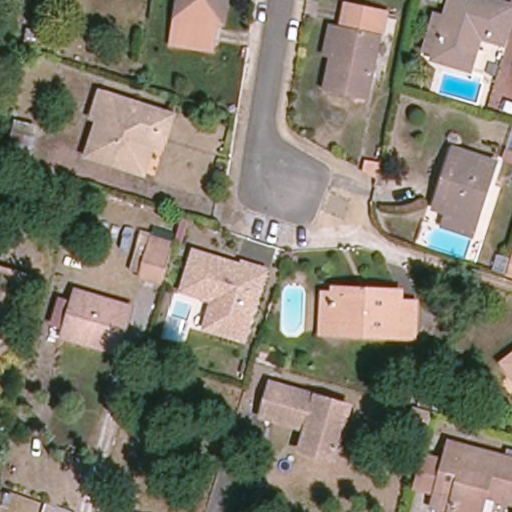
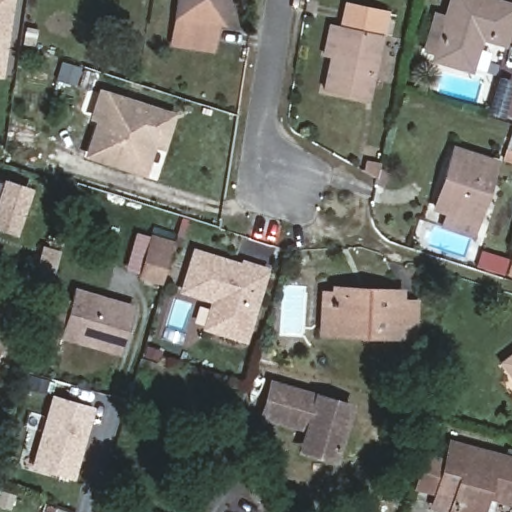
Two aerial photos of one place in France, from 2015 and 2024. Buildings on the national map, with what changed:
new [(2,77),(0,77),(0,0),(13,0),(2,77)]
unchanged [(213,51),(173,45),(180,0),(221,0),(213,51)]
unchanged [(512,17),(504,44),(481,37),(471,70),(434,59),(435,55),(423,51),(435,12),(447,16),(452,0),(489,0),(512,7),(512,17)]
unchanged [(367,101),(325,91),(339,26),(342,27),(347,5),(387,13),(367,101)]
unchanged [(172,117),(163,146),(152,142),(143,172),(91,155),(102,119),(96,117),(103,95),(172,117)]
unchanged [(503,150),(512,152),(512,150),(512,164),(500,160),(503,150)]
unchanged [(490,168),(471,226),(437,214),(446,186),(441,184),(451,155),(490,168)]
new [(0,229),(0,184),(1,185),(2,178),(32,187),(16,235),(0,229)]
unchanged [(171,244),(159,284),(137,277),(149,237),(171,244)]
unchanged [(245,344),(202,329),(210,301),(179,290),(192,247),(239,262),(241,257),(268,267),(245,344)]
unchanged [(512,257),(512,281),(502,278),(510,257),(512,257)]
unchanged [(21,325),(0,319),(0,267),(39,277),(21,325)]
unchanged [(403,303),(421,303),(420,337),(319,333),(321,295),(348,297),(349,291),(403,292),(403,303)]
unchanged [(129,311),(115,356),(60,339),(74,295),(129,311)]
unchanged [(512,357),(512,373),(504,363),(512,357)]
unchanged [(419,393),(415,406),(381,397),(384,382),(419,393)]
unchanged [(277,420),(262,416),(272,383),(287,387),(351,405),(338,452),(332,456),(308,450),(305,443),(308,428),(301,427),(277,420)]
new [(51,394),(95,407),(74,481),(29,468),(51,394)]
unchanged [(461,447),(447,500),(410,488),(424,437),(461,447)]
unchanged [(512,461),(512,506),(497,502),(494,512),(443,512),(447,500),(461,447),(472,450),(512,461)]

